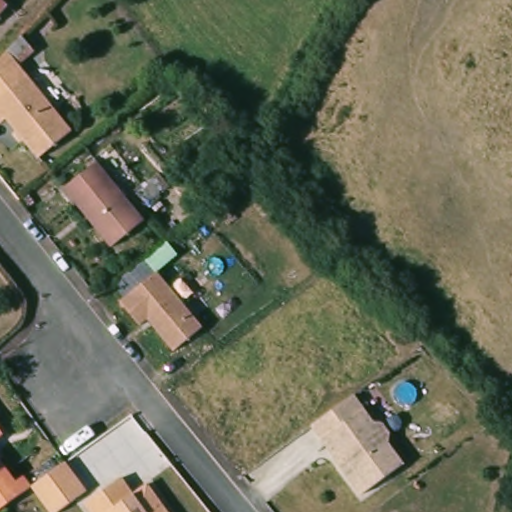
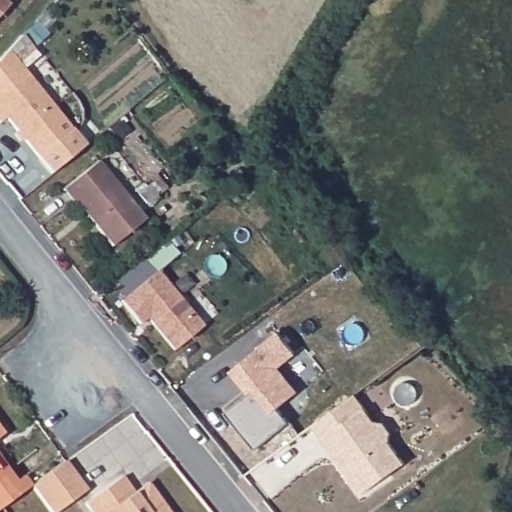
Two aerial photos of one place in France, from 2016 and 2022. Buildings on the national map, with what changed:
unchanged [(0,4),(0,0),(4,0),(0,4)]
unchanged [(39,152),(7,115),(0,120),(0,119),(0,54),(7,46),(73,125),(39,152)]
unchanged [(92,212),(79,197),(75,201),(65,189),(100,160),(147,217),(114,245),(89,215),(92,212)]
unchanged [(201,327),(170,353),(149,325),(140,331),(118,303),(130,295),(120,283),(137,267),(148,280),(156,273),(201,327)]
new [(295,354),(280,367),(298,390),(277,410),(288,421),(255,448),(225,411),(247,395),(229,371),(278,331),(295,354)]
unchanged [(306,422),(348,390),(368,418),(377,420),(385,429),(383,438),(399,459),(357,490),(332,457),(318,438),(306,422)]
unchanged [(0,441),(0,430),(5,437),(0,441)]
unchanged [(29,476),(36,485),(29,490),(3,510),(0,512),(0,457),(4,461),(20,483),(29,476)]
unchanged [(89,492),(60,512),(48,512),(29,490),(36,485),(69,463),(89,492)]
unchanged [(123,477),(135,493),(143,487),(149,483),(172,512),(93,512),(87,505),(123,477)]

